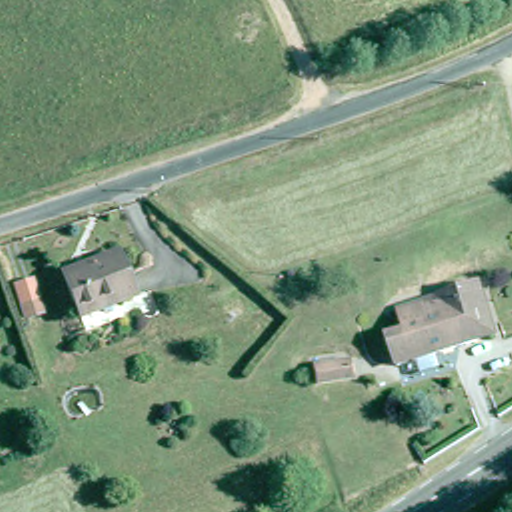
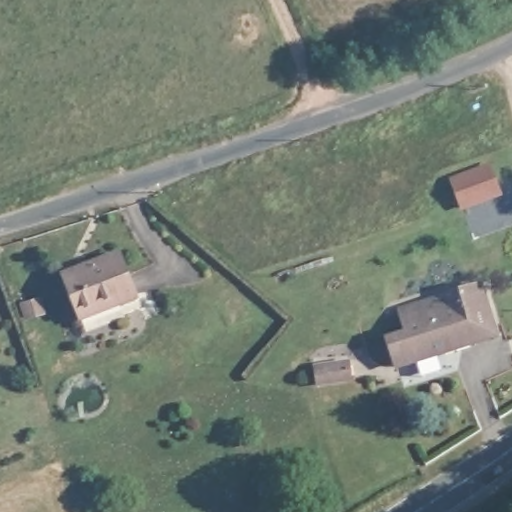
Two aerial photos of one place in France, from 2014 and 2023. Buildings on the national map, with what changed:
new [(502,194),(461,209),(449,178),(490,161),(502,194)]
unchanged [(75,309),(59,269),(114,248),(131,293),(115,299),(77,314),(75,309)]
unchanged [(470,285),(476,304),(480,304),(491,336),(393,368),(382,338),(402,332),(395,309),(470,285)]
unchanged [(32,318),(28,305),(41,302),(45,314),(32,318)]
unchanged [(319,385),(316,366),(349,362),(352,381),(319,385)]

